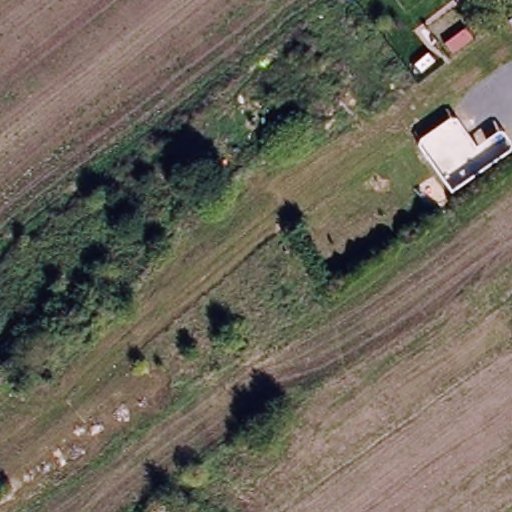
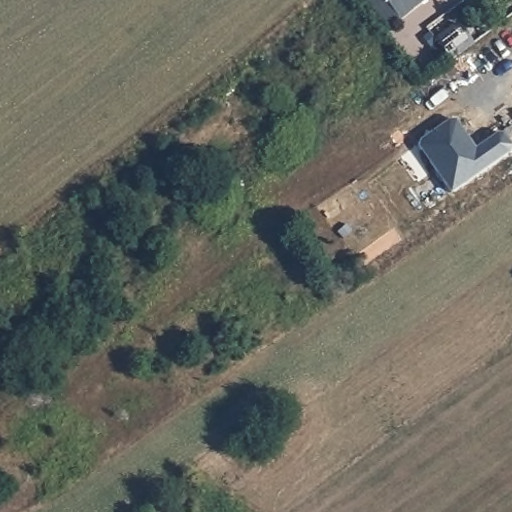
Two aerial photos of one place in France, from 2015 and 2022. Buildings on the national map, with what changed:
new [(398,20),(384,0),(426,0),(398,20)]
unchanged [(417,149),(420,142),(450,120),(455,121),(475,148),(498,133),(502,133),(512,147),(509,152),(450,193),(417,149)]
unchanged [(170,512),(156,512),(164,506),(170,512)]

